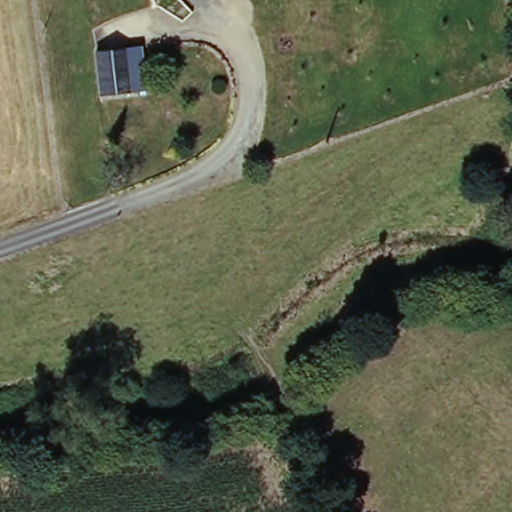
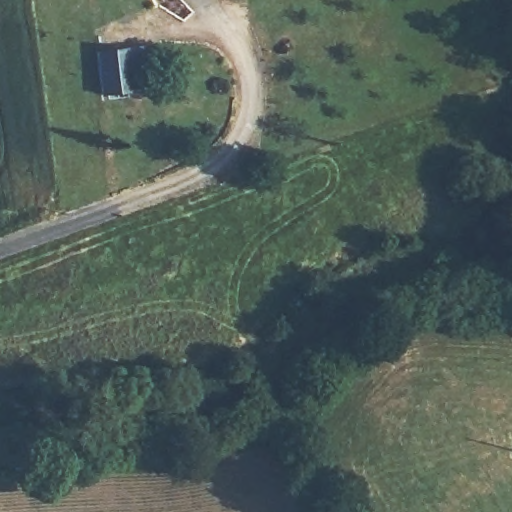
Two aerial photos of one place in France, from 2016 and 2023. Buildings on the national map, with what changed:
unchanged [(95,50),(143,45),(147,90),(99,95),(95,50)]

